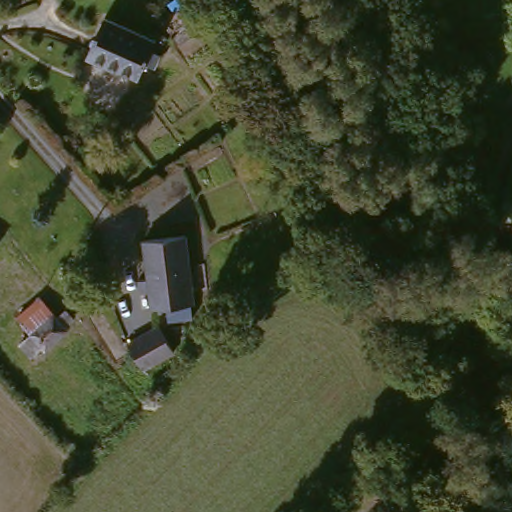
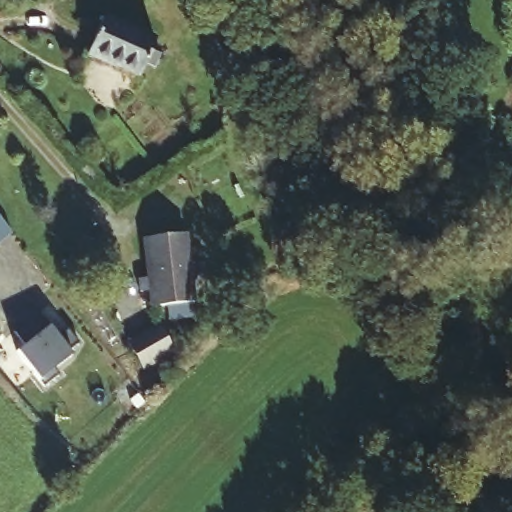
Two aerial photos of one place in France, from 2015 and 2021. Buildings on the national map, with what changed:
unchanged [(83,53),(102,21),(155,50),(134,84),(83,53)]
unchanged [(0,226),(14,244),(0,254),(0,226)]
unchanged [(149,313),(141,240),(179,235),(188,309),(149,313)]
demolished [(39,302),(62,333),(36,351),(14,320),(39,302)]
new [(78,343),(64,349),(71,357),(41,383),(18,354),(26,347),(15,335),(41,314),(54,331),(64,332),(69,330),(78,343)]
unchanged [(158,334),(166,351),(169,357),(139,370),(129,348),(158,334)]

